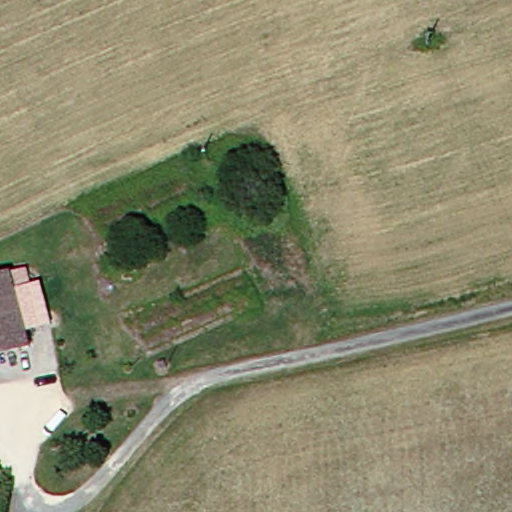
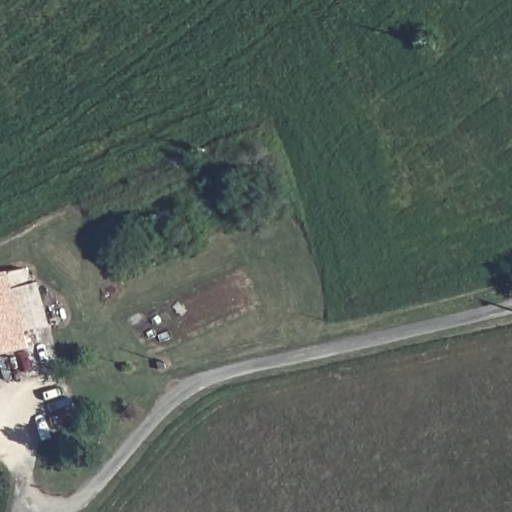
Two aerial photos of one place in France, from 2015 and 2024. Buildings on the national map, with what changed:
unchanged [(43,291),(27,295),(35,350),(0,356),(0,278),(40,270),(43,291)]

